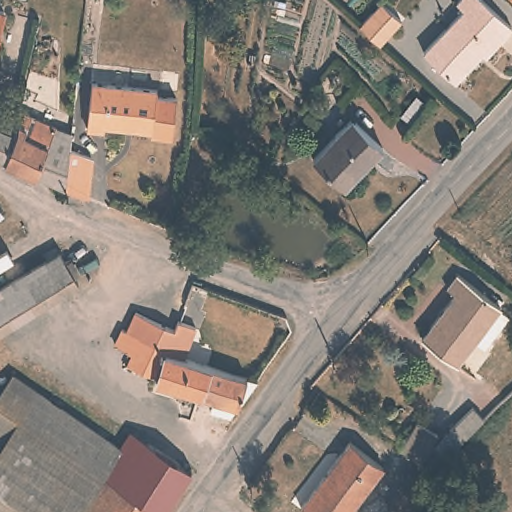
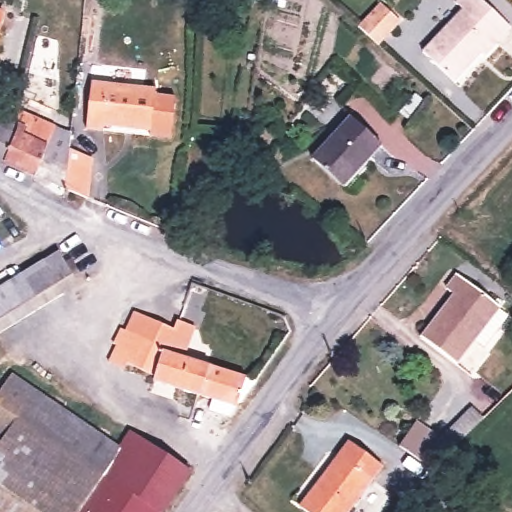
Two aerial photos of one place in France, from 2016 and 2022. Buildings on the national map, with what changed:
unchanged [(370,0),(385,0),(399,12),(377,37),(354,16),(370,0)]
unchanged [(464,5),(459,0),(485,0),(512,23),(483,53),(479,51),(456,76),(424,48),(464,5)]
unchanged [(0,24),(0,8),(3,9),(0,24)]
unchanged [(155,89),(154,95),(177,99),(169,139),(149,134),(149,128),(104,121),(103,127),(84,122),(92,78),(155,89)]
unchanged [(0,100),(3,101),(1,105),(13,110),(14,105),(25,109),(21,129),(7,161),(0,158),(0,100)]
unchanged [(7,161),(21,129),(25,109),(72,130),(70,148),(94,159),(90,188),(89,199),(66,189),(66,187),(7,161)]
unchanged [(356,116),(386,144),(347,187),(316,159),(356,116)]
unchanged [(0,213),(0,207),(4,210),(0,213)]
unchanged [(0,329),(0,287),(18,276),(40,262),(53,254),(70,282),(73,286),(59,294),(59,296),(38,310),(18,323),(2,333),(0,329)]
unchanged [(458,271),(502,303),(458,362),(423,336),(456,291),(448,285),(458,271)]
unchanged [(127,360),(131,351),(111,344),(119,327),(123,328),(132,308),(134,309),(168,325),(172,327),(177,312),(197,320),(186,349),(212,359),(201,389),(160,374),(160,372),(127,360)]
unchanged [(0,334),(0,329),(2,333),(0,334)]
unchanged [(238,403),(201,389),(212,359),(249,372),(238,403)]
unchanged [(0,391),(11,375),(13,372),(38,387),(0,445),(0,391)]
unchanged [(79,512),(0,512),(0,445),(38,387),(81,415),(124,443),(133,430),(191,470),(178,489),(163,512),(160,512),(104,472),(79,512)]
unchanged [(472,407),(484,418),(458,444),(447,433),(472,407)]
unchanged [(403,448),(421,424),(441,437),(435,445),(451,455),(434,470),(403,448)]
unchanged [(350,512),(306,512),(304,510),(349,443),(382,465),(350,512)]
unchanged [(160,512),(79,512),(104,472),(160,512)]
unchanged [(461,512),(439,512),(423,502),(438,479),(469,499),(461,512)]

